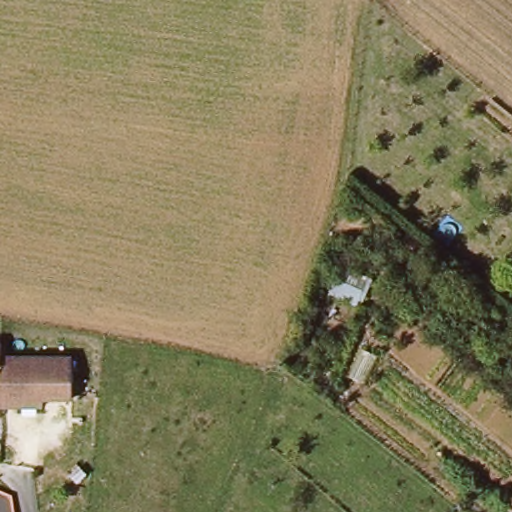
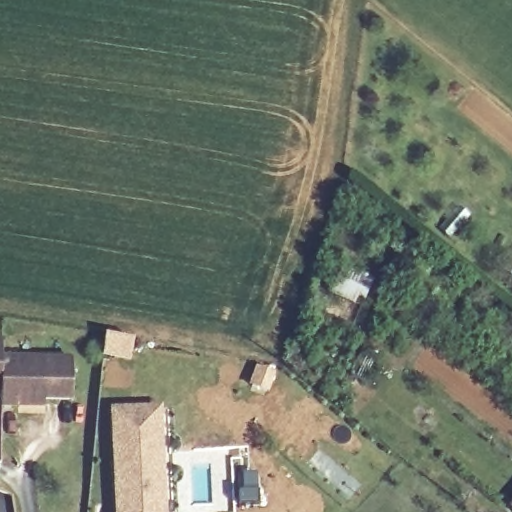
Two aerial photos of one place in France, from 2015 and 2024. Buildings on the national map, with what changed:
unchanged [(371,276),(357,306),(327,292),(340,263),(371,276)]
unchanged [(12,400),(14,385),(0,385),(0,336),(15,337),(15,351),(85,352),(85,392),(57,392),(57,401),(35,400),(12,400)]
new [(162,405),(168,512),(115,512),(110,408),(162,405)]

